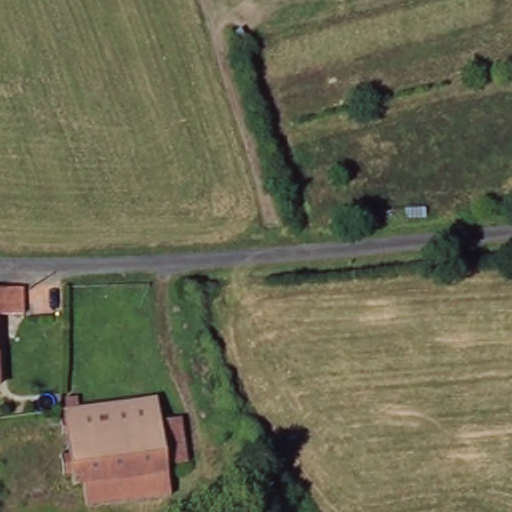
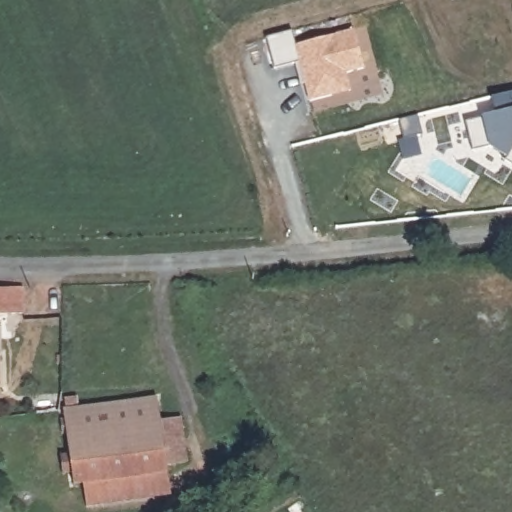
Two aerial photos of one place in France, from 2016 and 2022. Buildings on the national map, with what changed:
new [(299,61),(275,68),(267,38),(291,31),(295,46),(353,31),(365,67),(345,73),(350,91),(310,101),(299,61)]
new [(489,145),(473,150),(466,122),(483,118),(495,114),(492,98),(512,93),(512,163),(506,160),(508,156),(489,145)]
unchanged [(23,283),(24,284),(35,285),(37,326),(21,327),(21,310),(0,310),(0,283),(23,283)]
unchanged [(60,450),(69,448),(63,405),(65,404),(65,394),(77,393),(78,403),(157,394),(160,416),(180,413),(187,458),(167,461),(171,491),(86,501),(83,479),(74,480),(72,469),(63,471),(60,450)]
unchanged [(39,414),(32,415),(30,401),(38,400),(39,414)]
unchanged [(274,478),(253,488),(248,476),(269,466),(274,478)]

